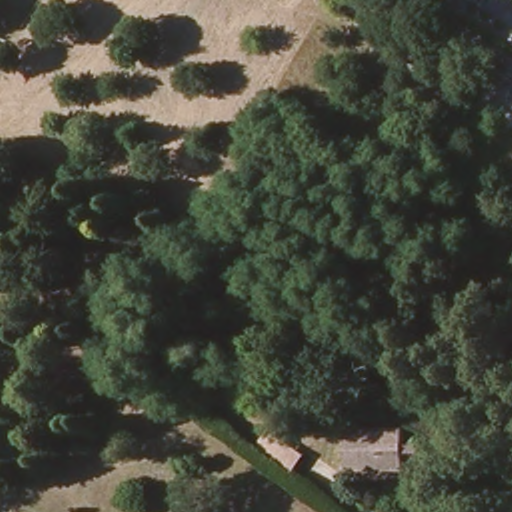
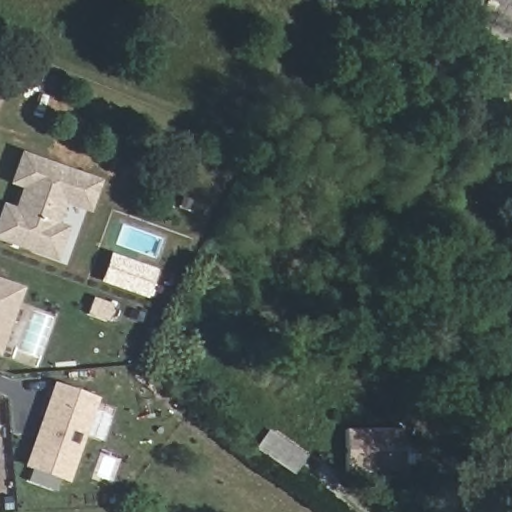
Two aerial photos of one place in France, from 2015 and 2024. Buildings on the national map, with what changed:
new [(60,223),(70,226),(59,260),(0,240),(0,209),(2,201),(15,205),(21,187),(9,183),(22,150),(104,178),(91,211),(67,203),(60,223)]
new [(0,320),(0,279),(22,287),(10,323),(0,320)]
new [(25,467),(54,383),(97,399),(69,481),(25,467)]
unchanged [(402,473),(343,470),(346,429),(403,430),(402,473)]
unchanged [(304,457),(291,477),(256,452),(268,432),(304,457)]

